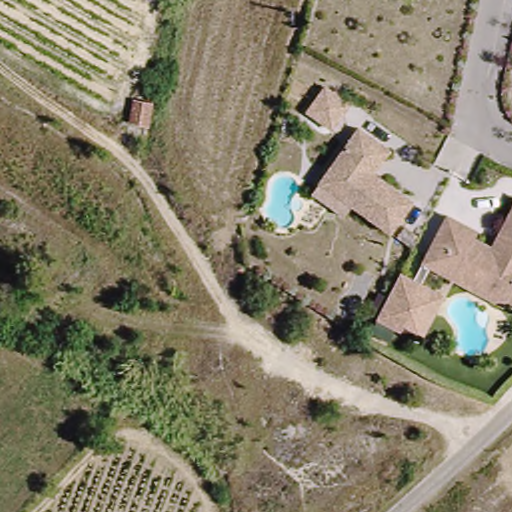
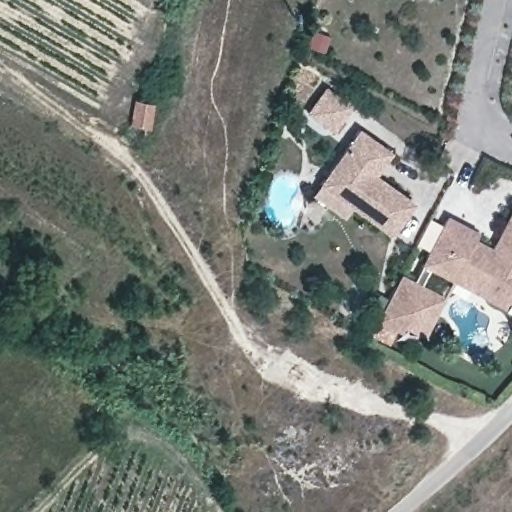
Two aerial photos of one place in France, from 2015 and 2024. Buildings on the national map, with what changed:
unchanged [(308,116),(324,91),(348,107),(332,132),(308,116)]
unchanged [(158,107),(149,133),(126,124),(132,100),(158,107)]
unchanged [(310,201),(317,190),(352,134),(386,155),(371,179),(412,204),(392,237),(350,211),(343,223),(310,201)]
unchanged [(455,282),(425,266),(448,221),(477,236),(475,243),(492,252),(512,215),(512,302),(507,310),(487,300),(493,287),(477,278),(471,290),(455,282)]
unchanged [(423,337),(407,326),(402,335),(379,320),(401,277),(433,295),(443,302),(423,337)]

